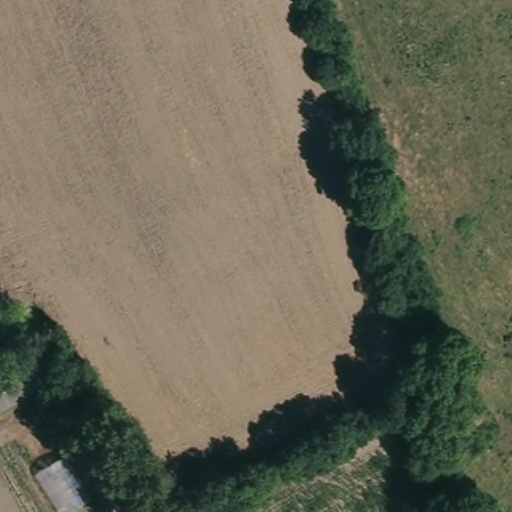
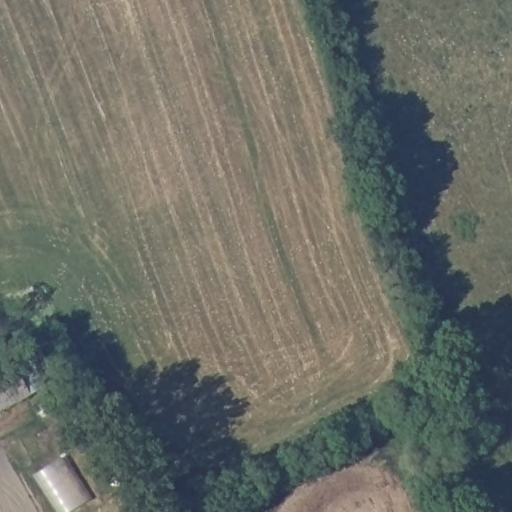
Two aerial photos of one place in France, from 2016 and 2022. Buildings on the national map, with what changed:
unchanged [(20,367),(29,363),(43,393),(0,413),(0,376),(20,367)]

